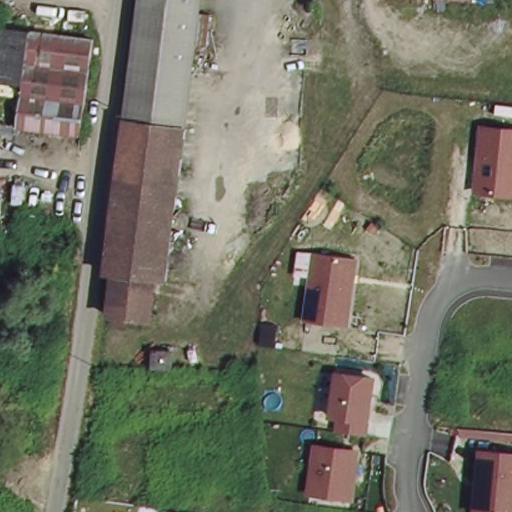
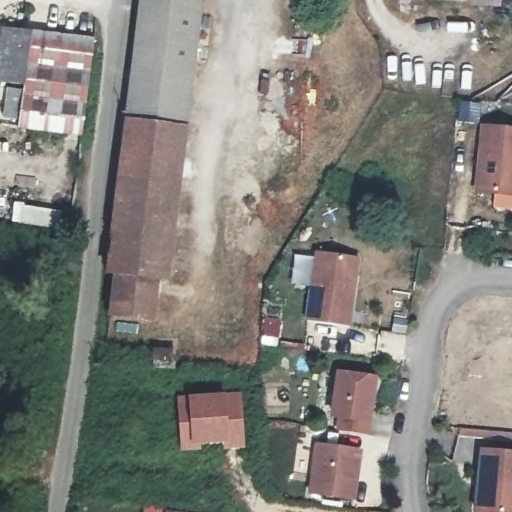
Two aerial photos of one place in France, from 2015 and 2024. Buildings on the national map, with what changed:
unchanged [(112,275),(146,0),(207,0),(173,282),(165,281),(125,277),(112,275)]
unchanged [(28,87),(0,83),(0,50),(2,29),(33,33),(28,87)]
unchanged [(90,39),(79,136),(23,129),(28,87),(33,33),(90,39)]
unchanged [(512,195),(475,191),(480,127),(512,131),(512,195)]
unchanged [(352,327),(304,322),(314,250),(360,257),(352,327)]
unchanged [(165,281),(160,319),(120,314),(125,277),(165,281)]
new [(263,316),(281,318),(277,347),(260,345),(263,316)]
unchanged [(371,436),(335,430),(337,419),(330,417),(337,371),(379,376),(371,436)]
new [(242,390),(245,448),(222,450),(221,444),(200,446),(201,449),(179,451),(175,395),(242,390)]
unchanged [(358,501),(308,495),(315,440),(364,447),(358,501)]
unchanged [(512,512),(476,512),(480,450),(512,453),(512,512)]
new [(197,512),(164,512),(165,506),(197,512)]

